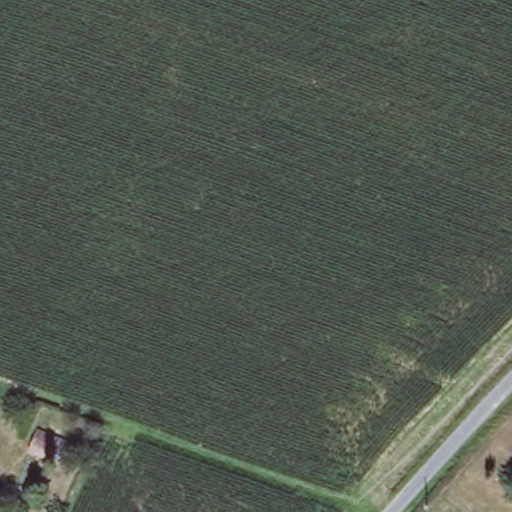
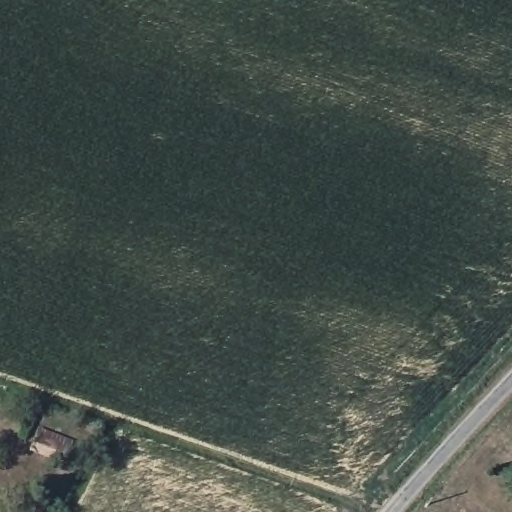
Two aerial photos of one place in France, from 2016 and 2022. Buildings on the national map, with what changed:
unchanged [(35,453),(45,430),(84,444),(74,471),(35,453)]

